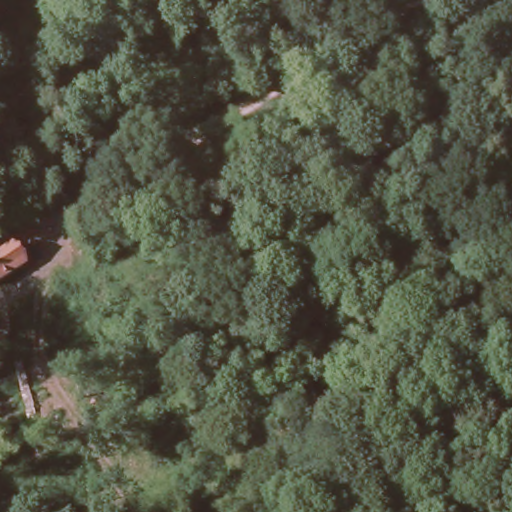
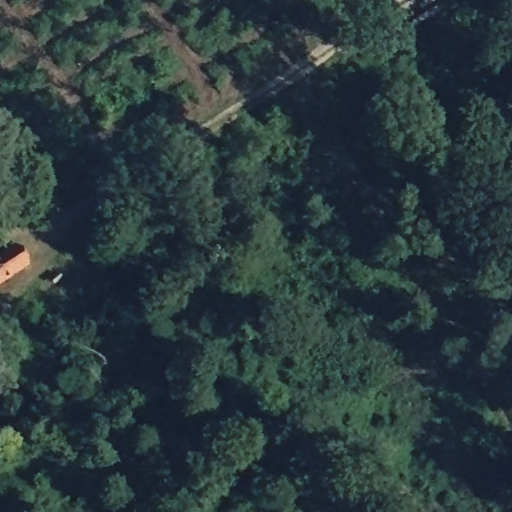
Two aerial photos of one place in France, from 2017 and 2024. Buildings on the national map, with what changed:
unchanged [(20,260),(0,274),(0,248),(8,243),(20,260)]

